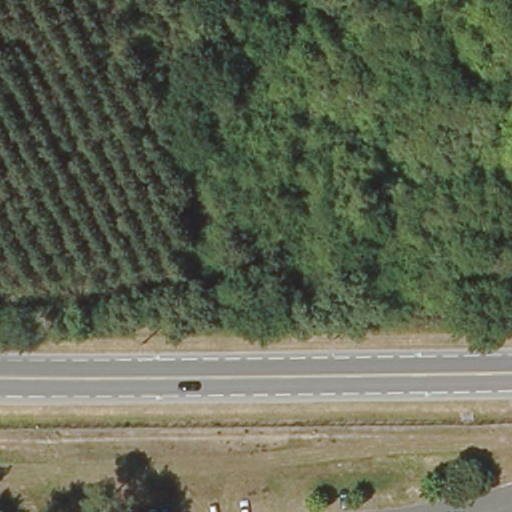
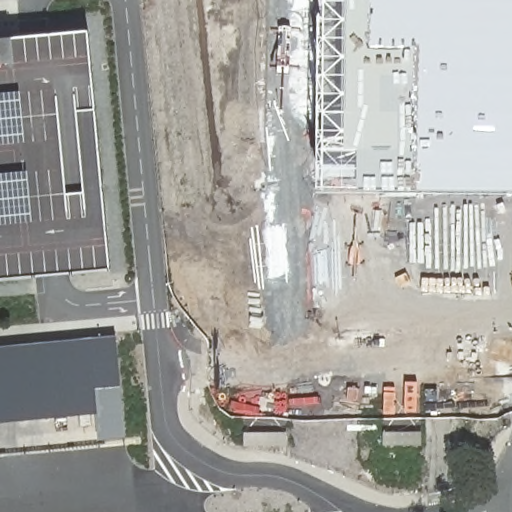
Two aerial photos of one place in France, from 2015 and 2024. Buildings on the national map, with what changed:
new [(315,0),(512,0),(512,197),(317,196),(315,0)]
new [(101,271),(0,281),(0,42),(79,34),(101,271)]
new [(121,438),(94,442),(90,415),(0,424),(0,346),(111,337),(121,438)]

